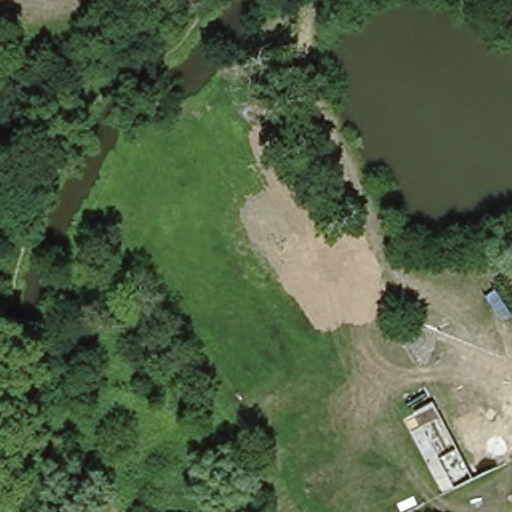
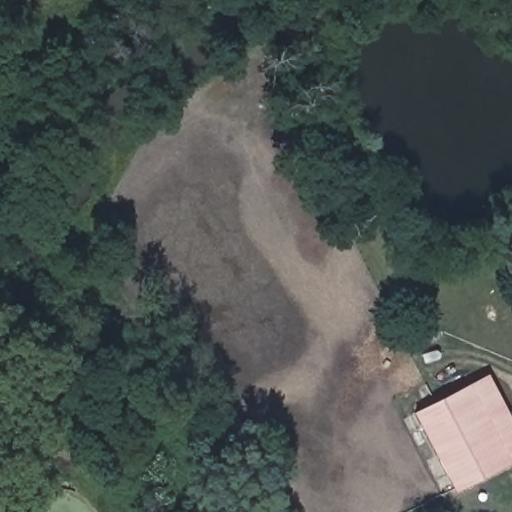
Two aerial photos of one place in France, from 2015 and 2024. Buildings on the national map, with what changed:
new [(415,412),(488,373),(512,418),(512,461),(455,490),(415,412)]
demolished [(507,453),(480,466),(455,425),(486,408),(507,453)]

